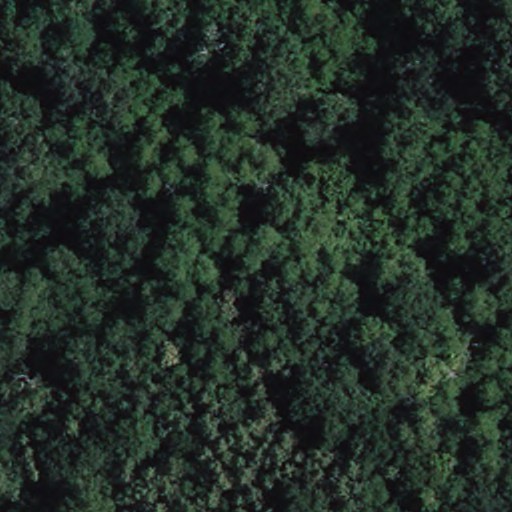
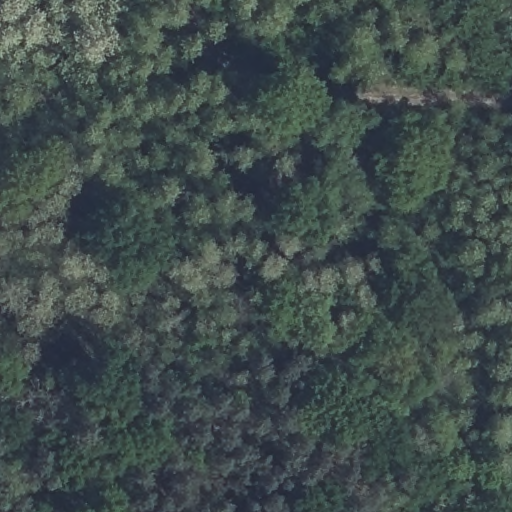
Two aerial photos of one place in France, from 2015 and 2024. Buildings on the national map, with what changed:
[]

